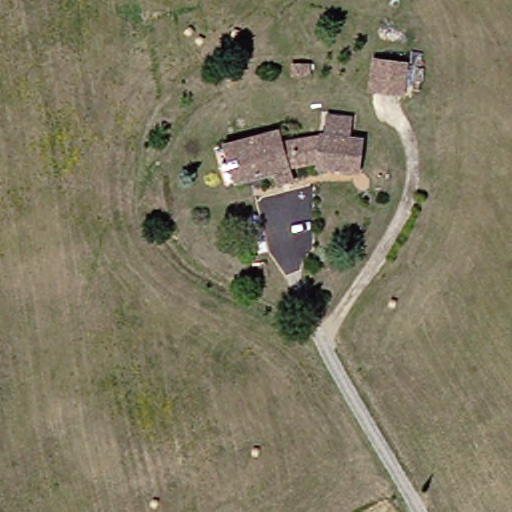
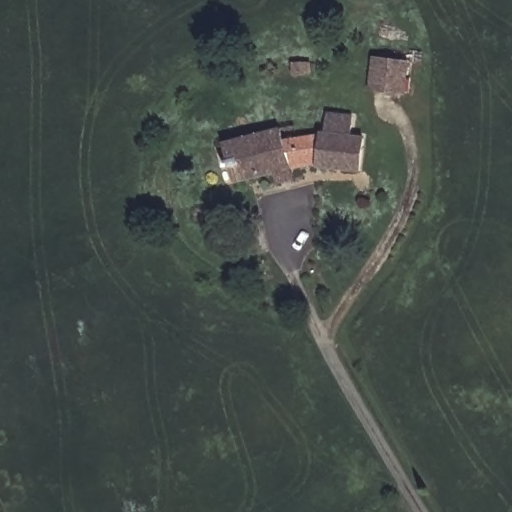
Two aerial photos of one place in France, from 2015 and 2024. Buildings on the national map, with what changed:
unchanged [(376,88),(377,67),(377,58),(408,61),(407,91),(402,91),(376,88)]
unchanged [(285,180),(282,171),(244,183),(231,143),(283,125),(287,138),(327,138),(327,118),(352,117),(352,138),(366,138),(366,169),(324,169),(324,161),(296,161),(297,167),(299,176),(285,180)]

